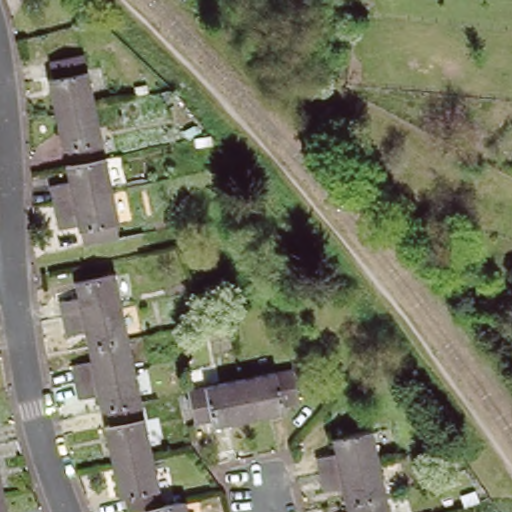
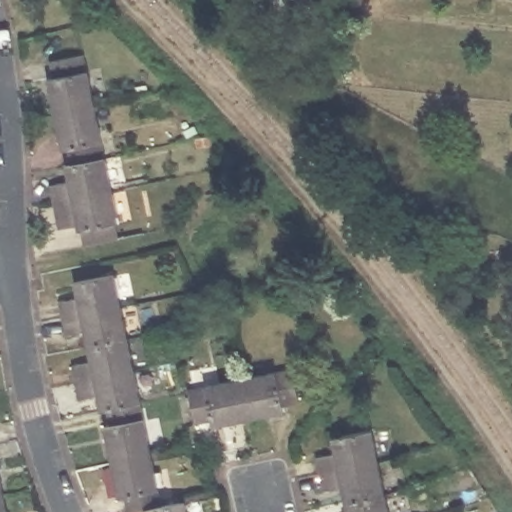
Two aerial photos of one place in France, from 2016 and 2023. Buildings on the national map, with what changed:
unchanged [(56,220),(52,204),(50,187),(66,184),(65,175),(65,174),(63,166),(70,165),(67,151),(61,152),(56,130),(56,125),(53,115),(47,81),(53,80),(53,76),(52,70),(50,64),(81,57),(84,72),(91,107),(97,140),(101,159),(107,189),(108,192),(110,201),(115,224),(111,225),(115,239),(81,245),(78,231),(76,231),(75,227),(65,229),(58,230),(56,220)]
unchanged [(119,308),(123,329),(126,342),(132,372),(134,380),(139,405),(145,431),(150,456),(155,482),(161,507),(181,503),(182,510),(183,512),(142,512),(142,511),(139,512),(127,512),(125,498),(118,500),(115,480),(111,465),(103,428),(108,427),(105,411),(100,413),(96,398),(86,400),(80,401),(77,385),(73,367),(85,365),(88,365),(85,350),(82,333),(67,337),(66,336),(63,320),(60,304),(76,301),(75,298),(73,286),(113,278),(119,308)]
unchanged [(297,402),(281,406),(282,411),(249,418),(213,425),(211,420),(195,424),(188,390),(240,380),(290,369),(297,402)]
unchanged [(347,505),(344,492),(343,487),(327,490),(326,488),(324,476),(320,457),(337,453),(337,451),(335,439),(372,431),(379,465),(382,481),(386,497),(389,512),(348,512),(347,505)]
unchanged [(5,498),(7,511),(8,512),(0,512),(0,476),(5,498)]

